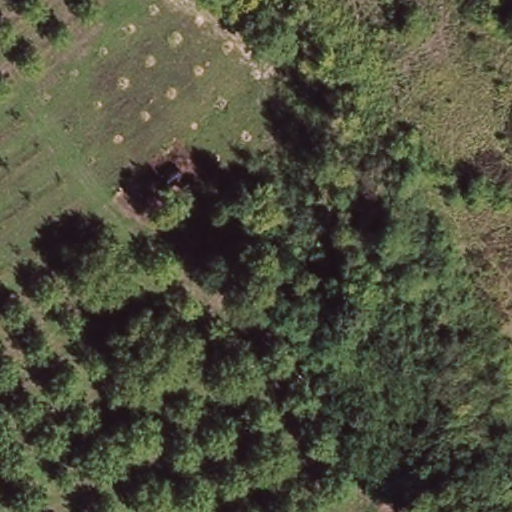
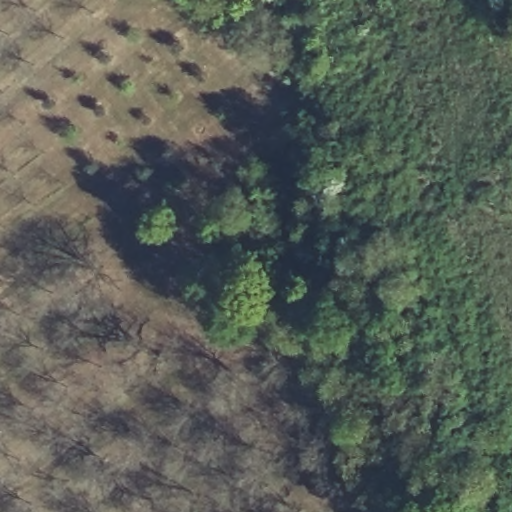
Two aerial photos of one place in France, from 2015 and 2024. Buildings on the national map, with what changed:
unchanged [(190,176),(176,187),(165,173),(178,162),(190,176)]

